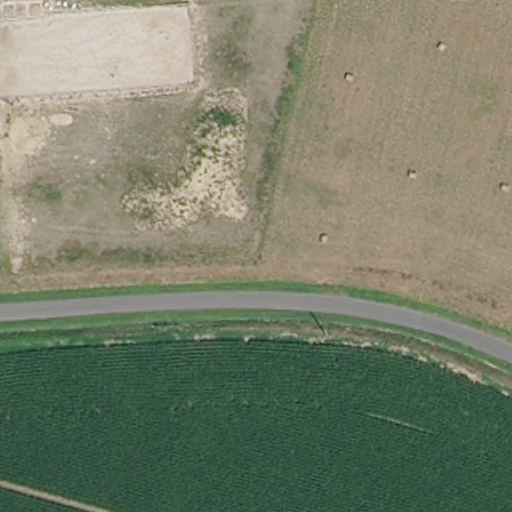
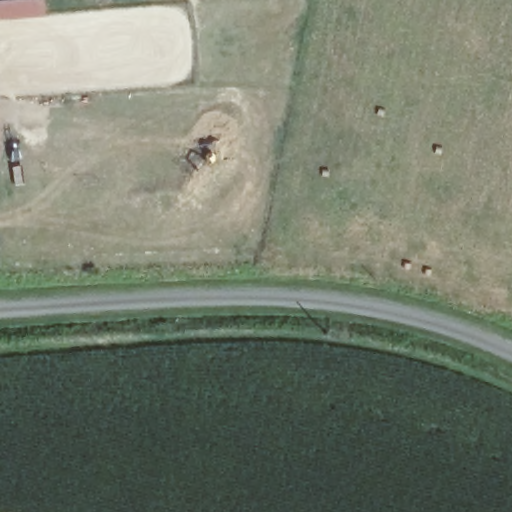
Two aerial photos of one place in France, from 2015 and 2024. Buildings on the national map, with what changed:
new [(0,19),(0,0),(44,0),(45,16),(0,19)]

